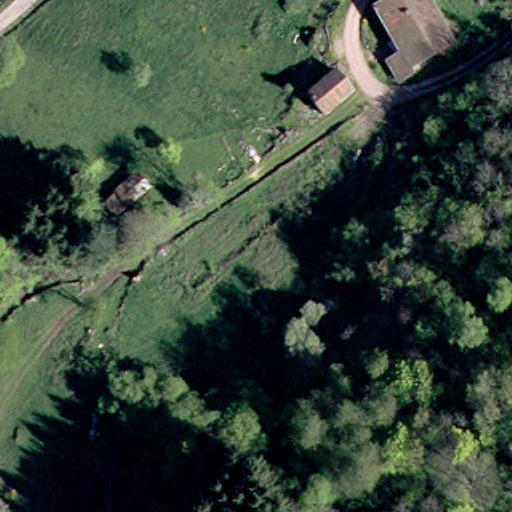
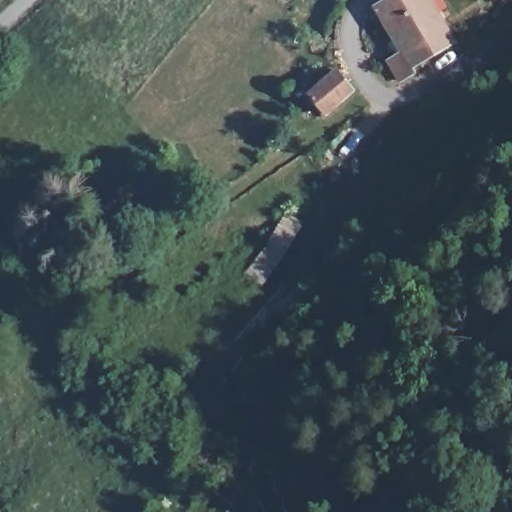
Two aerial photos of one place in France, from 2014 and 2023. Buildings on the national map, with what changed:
unchanged [(449,36),(407,62),(409,66),(396,74),(383,54),(390,50),(383,37),(389,34),(369,2),(371,0),(425,0),(449,36)]
unchanged [(299,99),(327,73),(342,91),(312,116),(299,99)]
unchanged [(123,232),(88,202),(128,161),(152,191),(123,232)]

